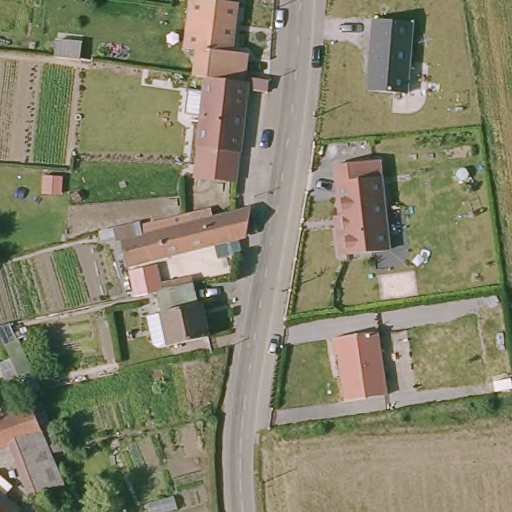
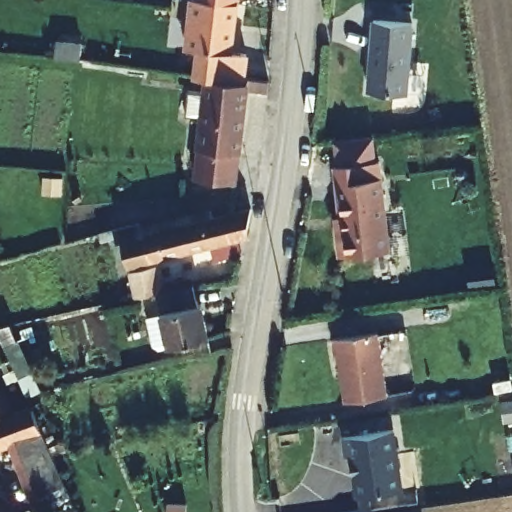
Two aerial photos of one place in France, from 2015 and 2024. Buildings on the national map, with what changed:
unchanged [(190,44),(179,41),(183,4),(177,3),(177,0),(222,0),(230,1),(226,50),(190,44)]
unchanged [(222,0),(231,0),(230,1),(222,0)]
unchanged [(414,23),(407,93),(366,89),(372,18),(414,23)]
unchanged [(226,50),(240,53),(237,76),(237,84),(198,78),(187,76),(190,44),(226,50)]
unchanged [(237,84),(249,86),(238,186),(194,179),(204,79),(237,84)]
unchanged [(333,216),(339,215),(334,164),(380,159),(382,176),(388,249),(336,256),(333,216)]
unchanged [(134,300),(117,234),(240,207),(246,240),(155,263),(157,271),(175,267),(180,289),(192,286),(198,309),(205,307),(213,337),(170,347),(155,295),(134,300)]
unchanged [(378,330),(388,394),(342,401),(334,337),(378,330)]
unchanged [(0,347),(0,339),(17,333),(25,360),(10,367),(0,347)]
unchanged [(30,401),(34,411),(42,432),(55,467),(57,473),(64,492),(52,496),(50,492),(49,488),(27,496),(7,452),(0,455),(0,413),(30,401)]
new [(396,430),(405,490),(360,497),(354,455),(349,455),(347,437),(396,430)]
new [(187,512),(170,512),(171,499),(189,501),(187,512)]
unchanged [(1,507),(3,506),(9,512),(0,512),(0,507),(1,507)]

